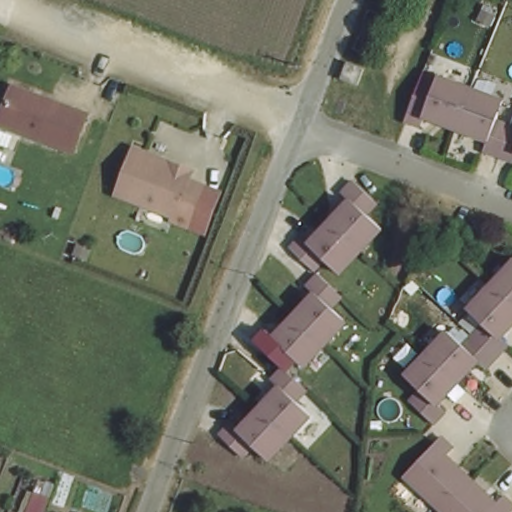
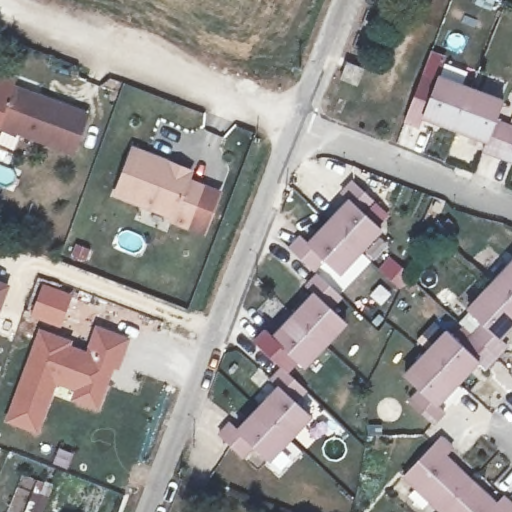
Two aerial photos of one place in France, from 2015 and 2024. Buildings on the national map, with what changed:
unchanged [(337,62),(353,68),(346,84),(331,78),(337,62)]
unchanged [(13,82),(88,110),(74,147),(0,119),(0,116),(13,82)]
unchanged [(460,111),(451,134),(421,123),(416,131),(402,125),(413,98),(426,103),(435,82),(466,94),(467,95),(460,111)]
unchanged [(500,107),(492,126),(506,132),(495,162),(481,157),(484,147),(452,134),(451,134),(460,111),(467,95),(500,107)]
unchanged [(495,162),(506,132),(512,134),(512,163),(510,167),(495,162)]
unchanged [(174,159),(170,168),(209,184),(193,222),(177,216),(178,212),(122,189),(140,145),(174,159)]
unchanged [(326,218),(345,200),(338,192),(350,180),(373,204),(362,216),(376,229),(357,248),(355,250),(324,220),(326,218)]
unchanged [(355,250),(334,271),(320,258),(310,268),(309,269),(297,257),(287,246),(297,235),(303,241),(324,220),(355,250)]
unchanged [(510,264),(512,265),(512,312),(487,290),(496,279),(510,264)]
unchanged [(311,290),(304,283),(313,274),(338,298),(329,309),(342,321),(322,341),(321,342),(299,321),(290,312),(311,290)]
new [(12,285),(0,315),(0,280),(12,285)]
new [(42,282),(74,293),(62,327),(30,317),(42,282)]
unchanged [(509,350),(504,355),(499,360),(473,337),(478,332),(484,326),(468,311),(487,290),(512,312),(512,328),(500,341),(509,350)]
unchanged [(299,321),(321,342),(301,363),(287,350),(276,361),(251,338),(262,327),(270,333),(290,312),(299,321)]
new [(38,327),(74,339),(72,344),(85,349),(94,324),(132,337),(119,371),(114,370),(100,412),(68,400),(72,392),(57,386),(40,435),(3,422),(38,327)]
unchanged [(499,360),(487,372),(476,364),(462,378),(456,385),(426,355),(431,350),(446,334),(462,349),(473,337),(499,360)]
unchanged [(456,385),(436,405),(445,415),(433,426),(411,405),(423,392),(407,376),(426,355),(456,385)]
unchanged [(256,405),(274,386),(267,378),(277,367),(303,391),(291,403),(302,414),(285,432),(282,435),(254,407),(256,405)]
unchanged [(282,435),(262,456),(250,445),(240,456),(214,430),(224,420),(233,428),(254,407),(282,435)]
unchanged [(435,512),(403,480),(434,447),(446,458),(440,465),(464,488),(440,512),(435,512)]
unchanged [(488,512),(440,512),(464,488),(469,494),(488,512)]
unchanged [(502,512),(496,512),(499,509),(502,512)]

